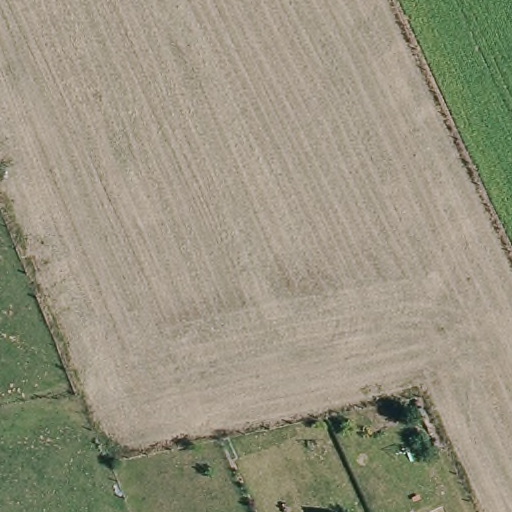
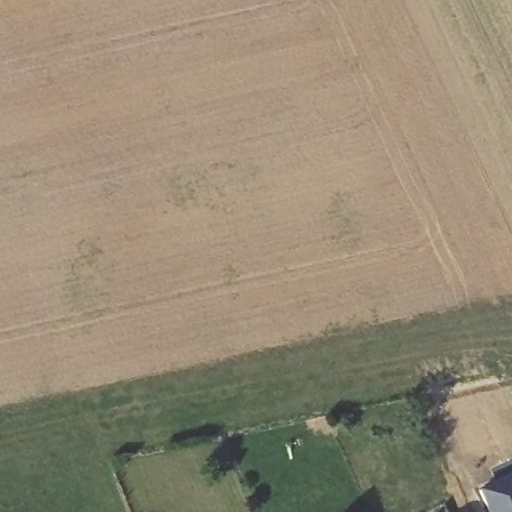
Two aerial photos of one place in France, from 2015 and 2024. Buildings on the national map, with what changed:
new [(512,476),(512,512),(485,512),(476,494),(512,476)]

